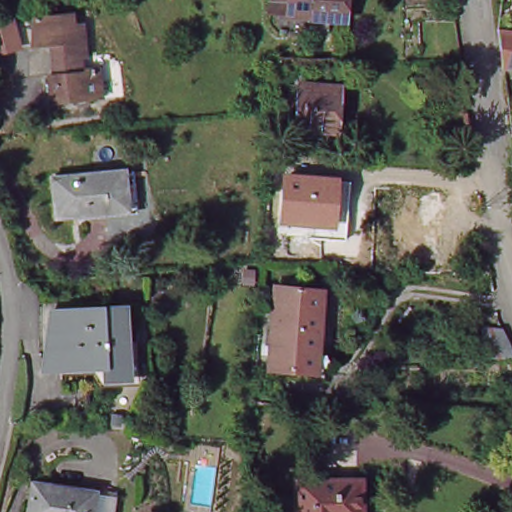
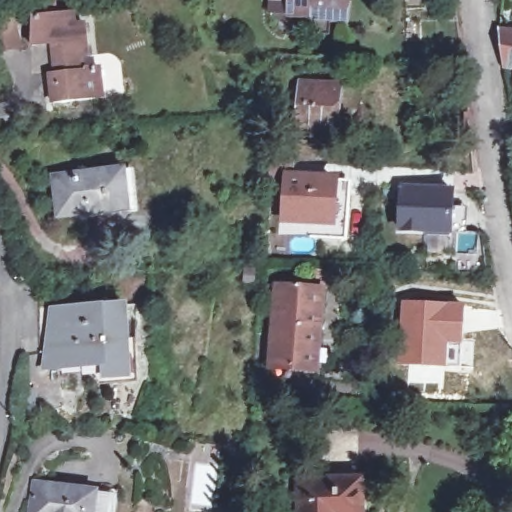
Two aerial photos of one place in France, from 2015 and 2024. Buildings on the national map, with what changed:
unchanged [(351,24),(299,20),(300,8),(287,7),(279,6),(279,0),(352,0),(351,24)]
unchanged [(95,97),(46,101),(43,74),(48,74),(44,43),(31,44),(28,17),(67,13),(69,24),(77,23),(80,55),(74,56),(76,71),(92,70),(95,97)]
unchanged [(505,28),(512,29),(512,45),(504,44),(505,28)]
unchanged [(301,119),(303,84),(339,87),(336,121),(301,119)]
unchanged [(129,208),(57,215),(53,177),(124,170),(129,208)]
unchanged [(285,219),(288,177),(333,181),(330,223),(285,219)]
new [(397,233),(399,187),(455,189),(452,236),(397,233)]
unchanged [(271,367),(278,286),(318,289),(312,370),(271,367)]
new [(400,300),(464,302),(462,345),(450,345),(448,369),(396,366),(400,300)]
unchanged [(128,377),(106,378),(105,365),(45,368),(52,310),(124,305),(128,377)]
unchanged [(483,356),(484,327),(504,328),(512,346),(512,358),(483,356)]
unchanged [(301,512),(300,480),(362,479),(363,512),(301,512)]
unchanged [(35,512),(39,483),(100,491),(97,512),(35,512)]

